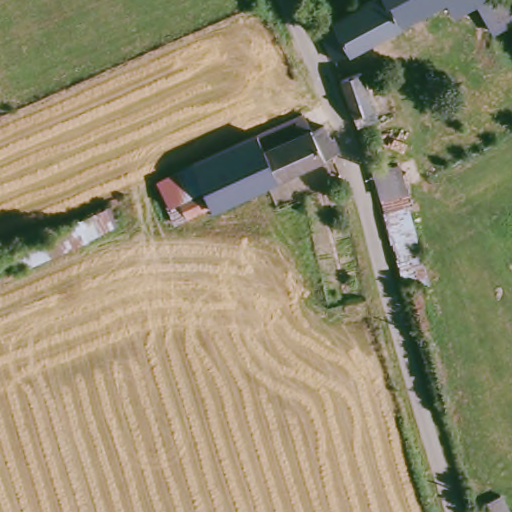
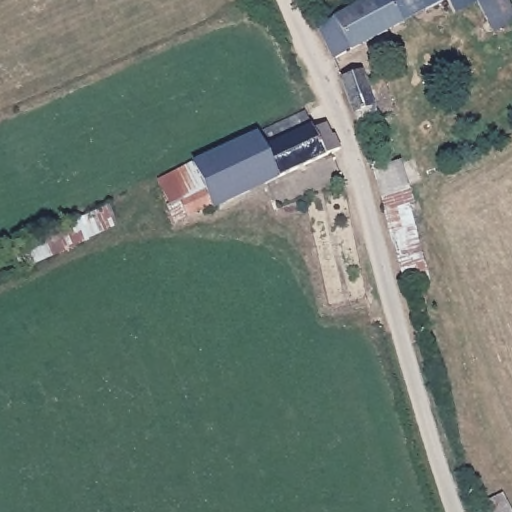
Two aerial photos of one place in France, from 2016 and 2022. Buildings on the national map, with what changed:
unchanged [(335,59),(318,22),(317,19),(331,13),(336,23),(379,0),(389,0),(402,24),(335,59)]
unchanged [(402,24),(389,0),(449,0),(402,24)]
unchanged [(456,10),(449,0),(477,0),(456,10)]
unchanged [(512,3),(512,21),(495,29),(478,0),(510,0),(512,3)]
unchanged [(356,70),(375,116),(356,126),(338,78),(356,70)]
unchanged [(215,214),(213,210),(179,225),(162,187),(193,173),(192,170),(261,137),(270,153),(313,131),(316,135),(326,130),(333,141),(340,138),(347,153),(345,154),(215,214)]
unchanged [(402,167),(418,224),(432,283),(410,289),(390,217),(377,174),(402,167)]
unchanged [(113,207),(122,234),(24,275),(15,248),(113,207)]
unchanged [(491,512),(489,507),(505,498),(511,512),(491,512)]

